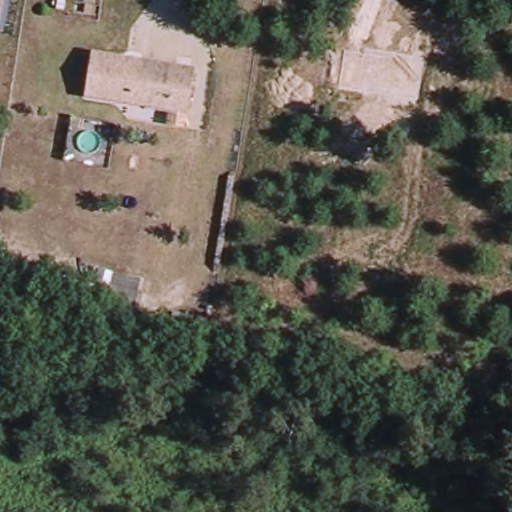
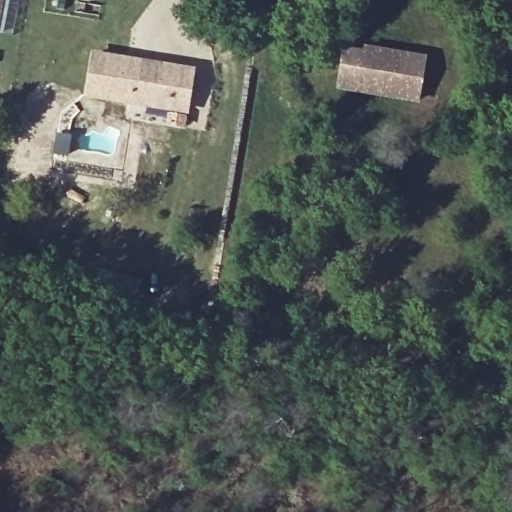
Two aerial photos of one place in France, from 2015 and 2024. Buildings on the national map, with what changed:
new [(420,104),(336,90),(343,48),(364,51),(364,46),(427,56),(420,104)]
unchanged [(190,110),(93,94),(99,54),(196,69),(190,110)]

